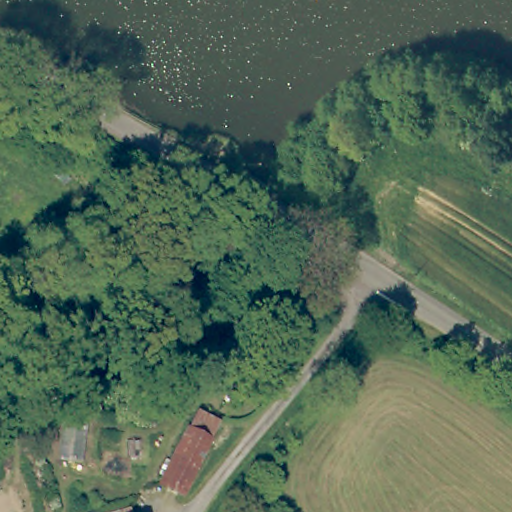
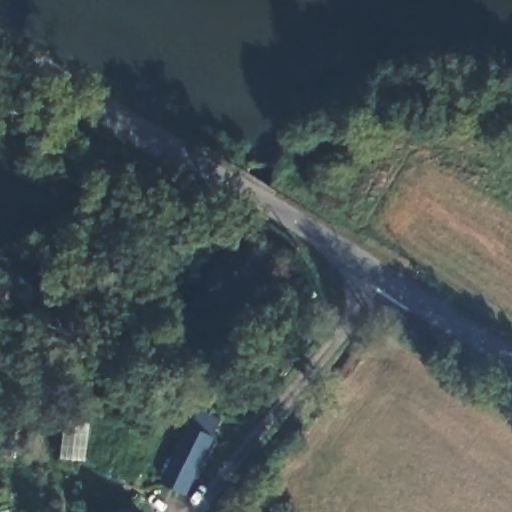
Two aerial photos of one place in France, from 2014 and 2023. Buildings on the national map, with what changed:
unchanged [(182,495),(160,482),(195,412),(218,422),(182,495)]
unchanged [(130,508),(131,512),(112,512),(130,508)]

